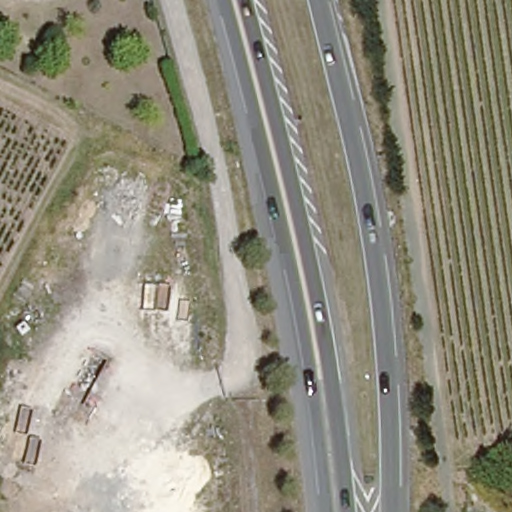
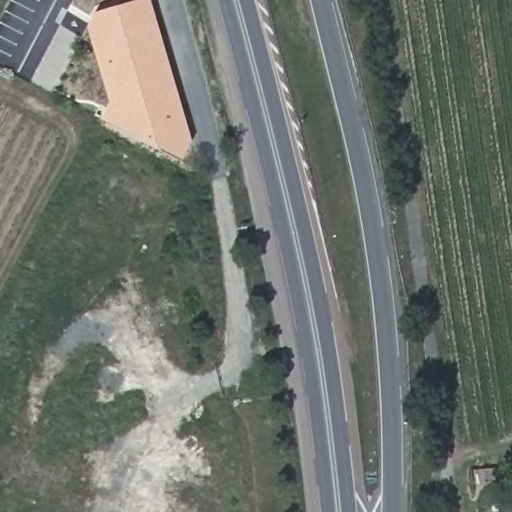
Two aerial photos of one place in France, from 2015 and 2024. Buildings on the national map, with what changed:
new [(182,160),(101,120),(110,104),(87,26),(96,14),(141,0),(151,0),(192,142),(182,160)]

